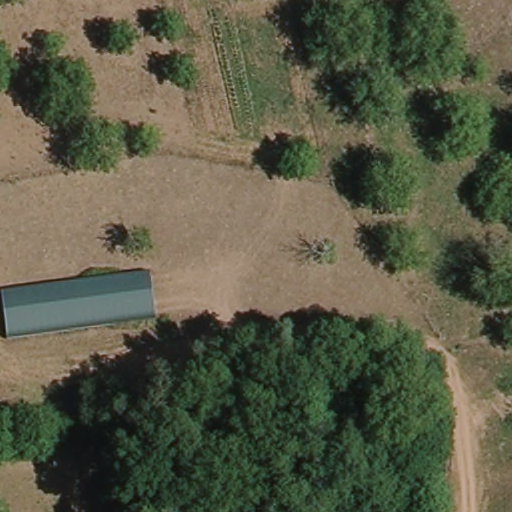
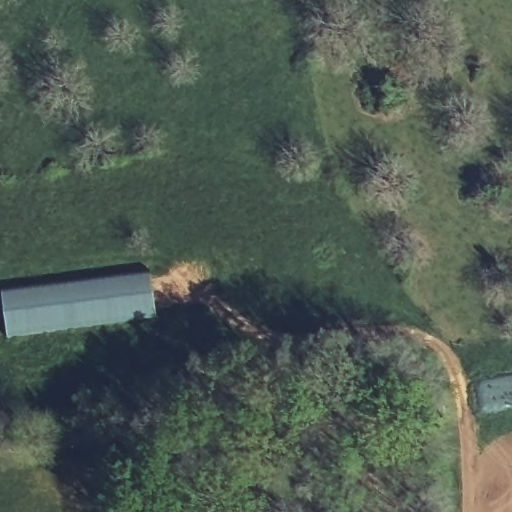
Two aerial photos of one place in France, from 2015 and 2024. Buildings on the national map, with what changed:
unchanged [(150,272),(155,320),(6,337),(0,291),(150,272)]

